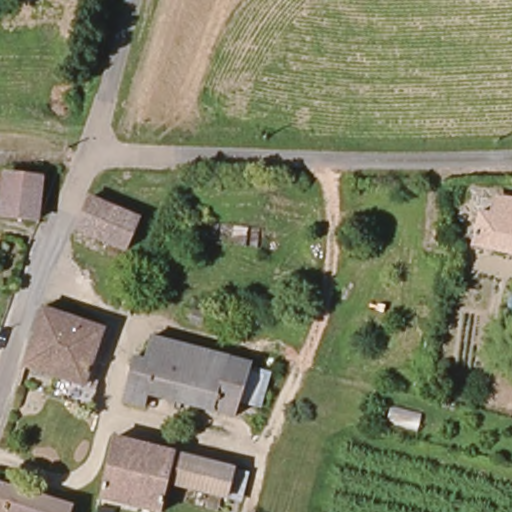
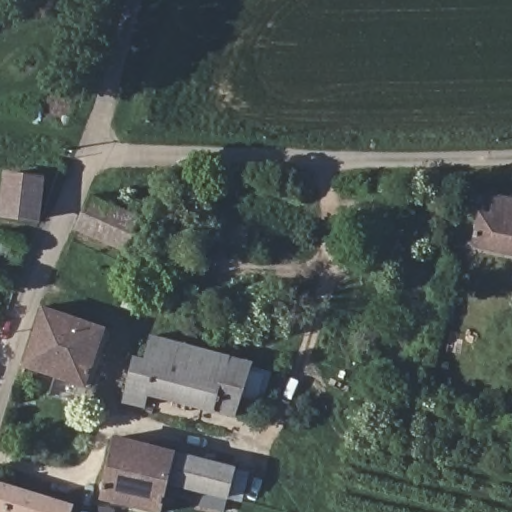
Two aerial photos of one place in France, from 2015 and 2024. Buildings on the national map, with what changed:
unchanged [(0,218),(0,194),(2,176),(43,180),(37,221),(0,218)]
unchanged [(93,195),(140,215),(125,247),(80,230),(93,195)]
unchanged [(474,246),(482,211),(494,212),(498,195),(512,198),(512,254),(474,246)]
unchanged [(230,224),(227,240),(194,236),(195,221),(230,224)]
unchanged [(51,305),(109,325),(89,386),(29,369),(51,305)]
unchanged [(232,420),(145,398),(143,413),(120,407),(131,360),(141,361),(146,338),(247,365),(232,420)]
unchanged [(171,491),(166,512),(144,512),(102,501),(117,442),(237,472),(230,505),(171,491)]
unchanged [(72,512),(0,512),(0,481),(75,506),(72,512)]

